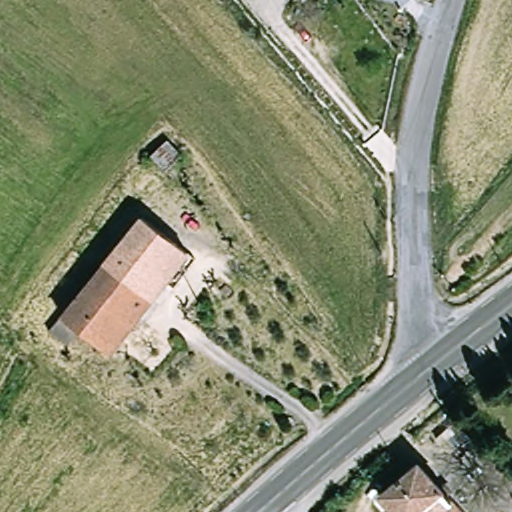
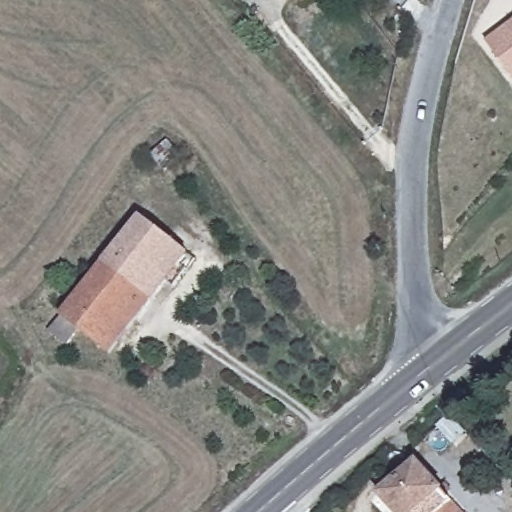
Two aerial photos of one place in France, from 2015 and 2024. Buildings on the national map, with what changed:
new [(485,42),(512,22),(512,80),(504,68),(485,42)]
unchanged [(168,139),(182,155),(173,163),(181,172),(174,178),(151,155),(168,139)]
unchanged [(123,245),(110,235),(133,207),(193,253),(179,271),(187,277),(179,287),(171,281),(116,353),(85,329),(72,345),(54,331),(123,245)]
unchanged [(463,512),(395,512),(379,494),(417,462),(463,512)]

